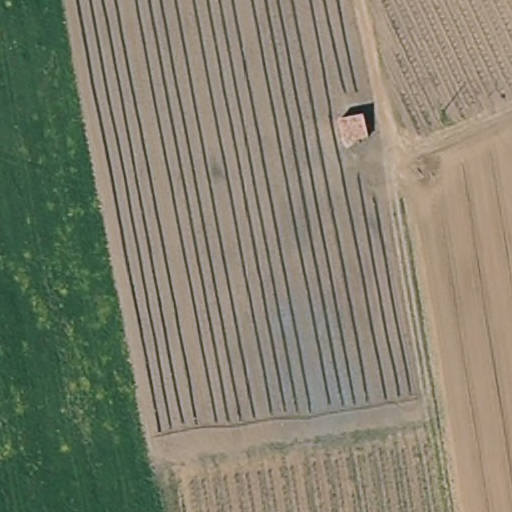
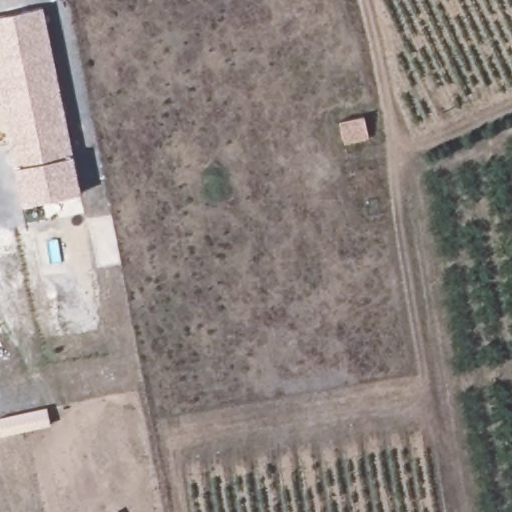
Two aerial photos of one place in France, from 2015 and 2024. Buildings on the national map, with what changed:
new [(43,7),(73,156),(81,195),(22,207),(13,168),(0,101),(0,16),(43,7)]
unchanged [(371,136),(347,145),(340,122),(364,113),(371,136)]

